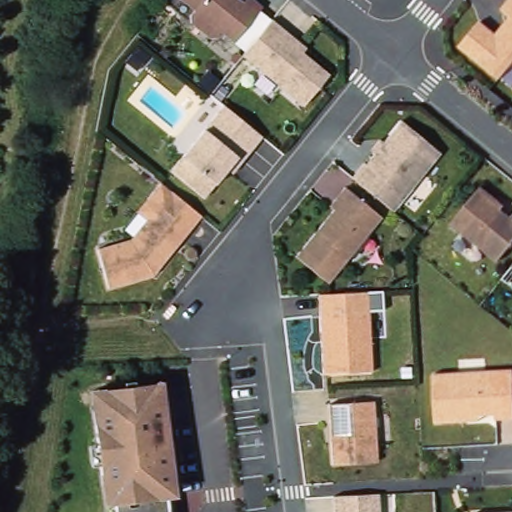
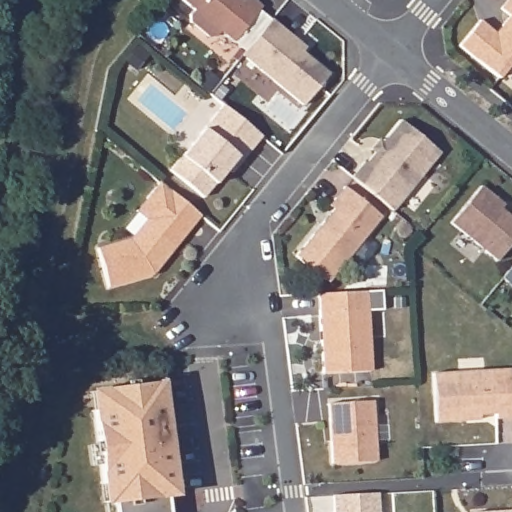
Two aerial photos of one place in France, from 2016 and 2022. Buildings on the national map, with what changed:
unchanged [(230,47),(217,36),(210,41),(187,19),(194,12),(176,0),(250,0),(261,9),(230,47)]
unchanged [(511,64),(495,83),(456,50),(480,22),(495,34),(510,17),(500,11),(508,0),(512,0),(512,64),(511,64)]
unchanged [(329,77),(301,110),(241,62),(270,24),(329,77)]
unchanged [(260,140),(201,200),(170,175),(222,108),(260,140)]
unchanged [(438,157),(392,214),(348,177),(398,122),(438,157)]
unchanged [(199,217),(151,280),(104,290),(95,250),(128,241),(144,222),(135,213),(160,183),(199,217)]
unchanged [(380,221),(325,287),(293,258),(335,210),(328,202),(340,190),(380,221)]
unchanged [(512,215),(512,244),(493,265),(450,225),(480,191),(512,215)]
unchanged [(510,267),(512,264),(512,269),(510,267)]
unchanged [(355,289),(356,310),(372,309),(377,368),(326,371),(323,292),(355,289)]
unchanged [(510,372),(512,404),(512,419),(434,422),(432,374),(510,372)]
unchanged [(160,381),(175,500),(172,512),(113,512),(112,507),(100,507),(85,391),(160,381)]
unchanged [(373,401),(376,463),(328,463),(325,405),(373,401)]
unchanged [(375,496),(377,512),(331,512),(330,498),(375,496)]

